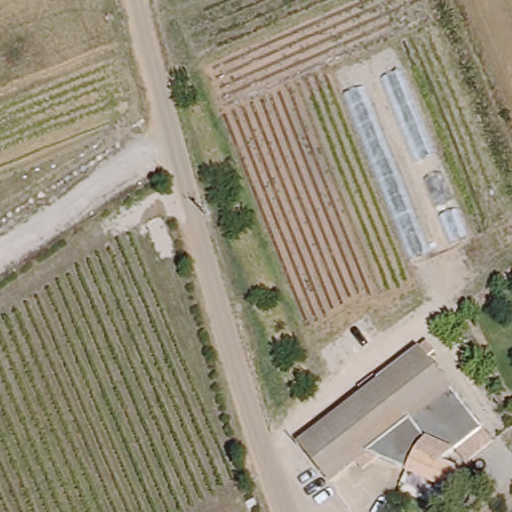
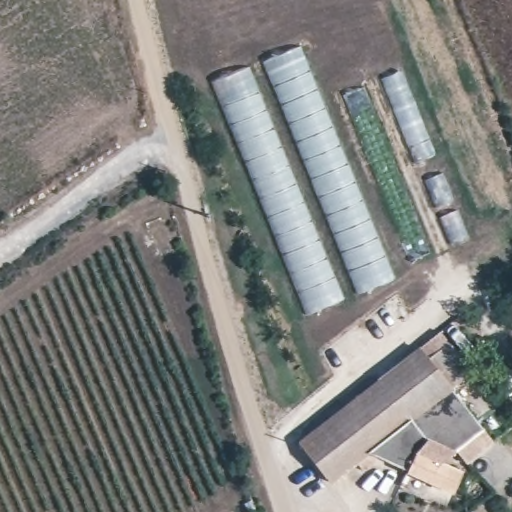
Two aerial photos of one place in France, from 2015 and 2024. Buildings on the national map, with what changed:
new [(394,276),(360,290),(264,57),(299,43),(394,276)]
new [(341,299),(307,314),(213,81),(248,66),(341,299)]
new [(402,71),(469,236),(451,244),(384,78),(402,71)]
unchanged [(341,96),(364,86),(430,253),(409,261),(341,96)]
unchanged [(303,437),(424,342),(457,384),(416,416),(335,477),(303,437)]
unchanged [(457,384),(487,422),(448,455),(422,444),(432,435),(416,416),(457,384)]
unchanged [(413,465),(422,444),(448,455),(468,464),(459,485),(413,465)]

